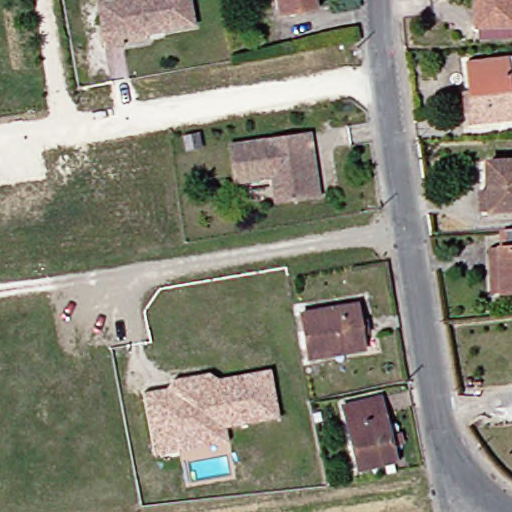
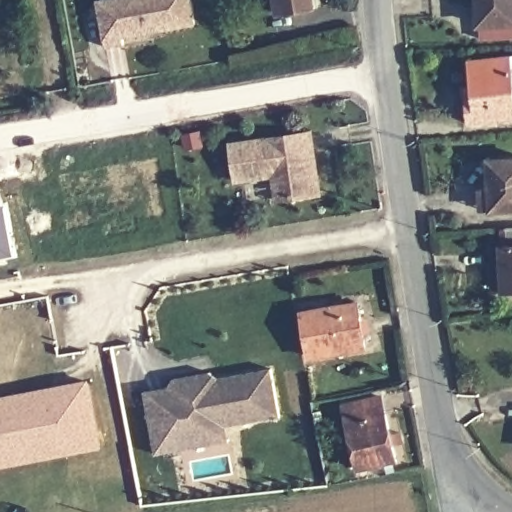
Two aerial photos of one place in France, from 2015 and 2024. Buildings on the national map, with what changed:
unchanged [(203,24),(130,36),(131,43),(113,46),(107,14),(105,0),(199,0),(203,24)]
unchanged [(315,4),(280,11),(278,0),(315,0),(315,4)]
unchanged [(512,35),(480,36),(479,0),(512,0),(512,35)]
unchanged [(512,116),(471,120),(468,92),(476,91),(473,60),(512,56),(512,116)]
unchanged [(321,196),(283,202),(279,176),(242,183),(236,146),(316,133),(319,150),(327,194),(321,196)]
unchanged [(512,208),(487,209),(486,187),(494,186),(492,160),(512,159),(512,208)]
new [(4,204),(13,254),(0,257),(0,205),(4,204)]
unchanged [(498,244),(506,244),(506,228),(512,228),(512,290),(501,291),(498,244)]
unchanged [(361,302),(369,346),(316,356),(309,312),(361,302)]
unchanged [(231,442),(156,455),(144,391),(168,387),(175,379),(211,373),(220,379),(272,369),(282,417),(228,427),(231,442)]
new [(51,385),(82,379),(95,443),(64,450),(61,433),(0,446),(0,396),(7,394),(51,385)]
unchanged [(383,400),(398,462),(364,470),(349,408),(383,400)]
new [(61,433),(64,450),(0,463),(0,446),(61,433)]

